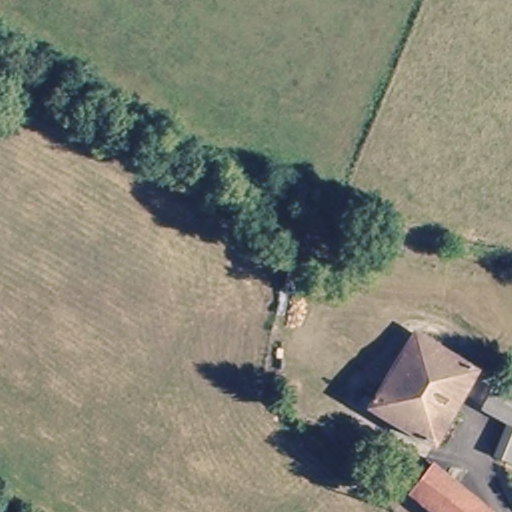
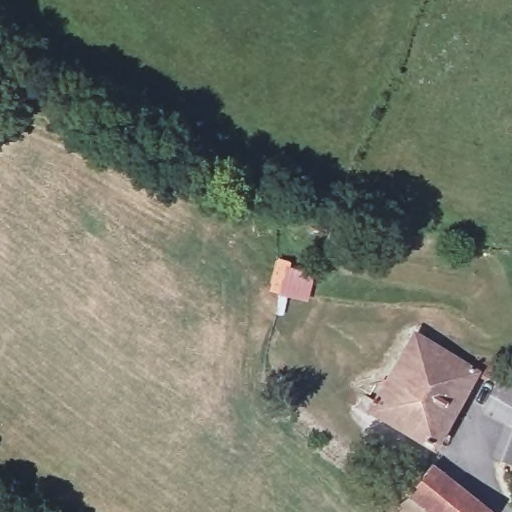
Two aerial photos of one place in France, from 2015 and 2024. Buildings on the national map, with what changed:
unchanged [(369,421),(358,416),(364,405),(374,409),(413,342),(475,372),(435,449),(372,416),(369,421)]
unchanged [(478,366),(494,374),(491,379),(475,372),(478,366)]
unchanged [(499,387),(512,393),(512,416),(491,404),(499,387)]
unchanged [(512,435),(512,460),(509,459),(503,457),(512,435)]
unchanged [(436,465),(486,507),(484,512),(435,512),(414,494),(436,465)]

